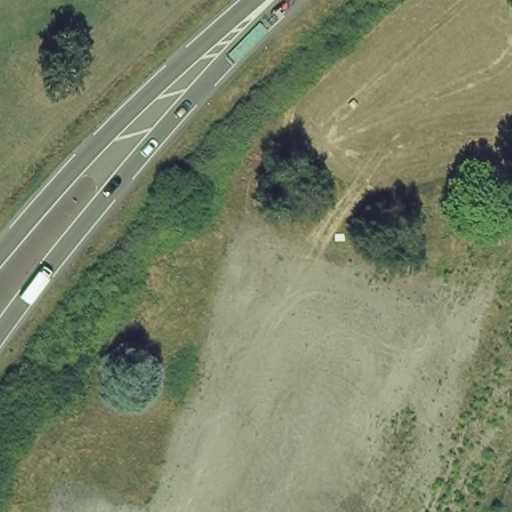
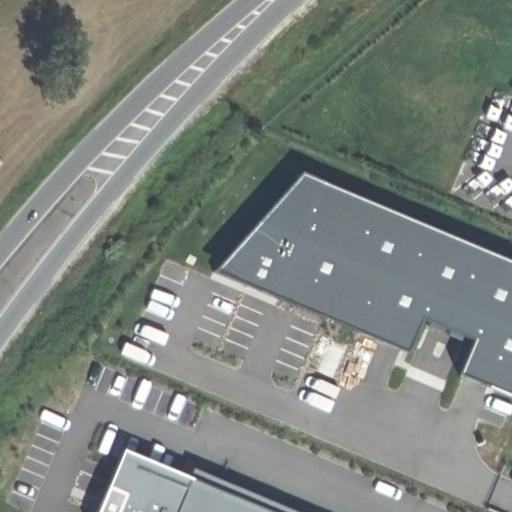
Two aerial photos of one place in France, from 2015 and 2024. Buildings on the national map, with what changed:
new [(459,373),(474,339),(419,315),(408,354),(215,276),(304,178),(512,264),(512,394),(459,373)]
new [(188,477),(193,468),(296,512),(97,512),(123,450),(188,477)]

